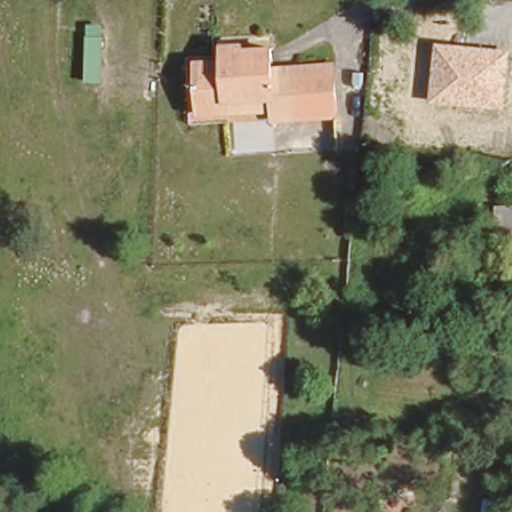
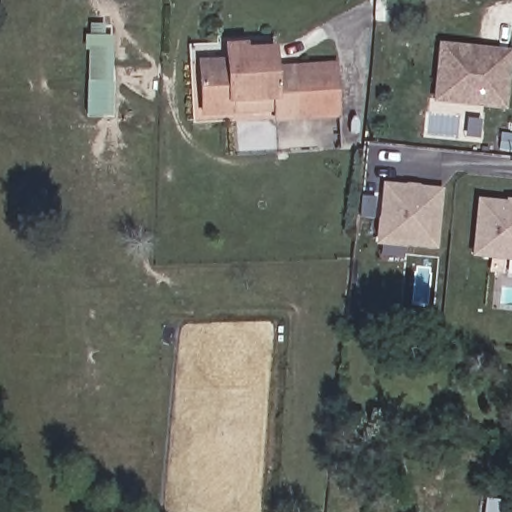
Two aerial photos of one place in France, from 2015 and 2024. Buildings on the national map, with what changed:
new [(87,81),(88,49),(84,49),(85,34),(112,35),(111,82),(87,81)]
unchanged [(201,106),(196,107),(193,59),(193,54),(223,52),(222,39),(242,38),(242,41),(271,39),(272,53),(272,60),(330,56),(334,105),(275,111),(274,101),(234,104),(201,106)]
unchanged [(506,108),(430,101),(436,42),(511,49),(506,108)]
new [(374,243),(381,180),(443,186),(436,249),(374,243)]
new [(476,197),(504,200),(505,197),(512,198),(512,261),(469,256),(476,197)]

